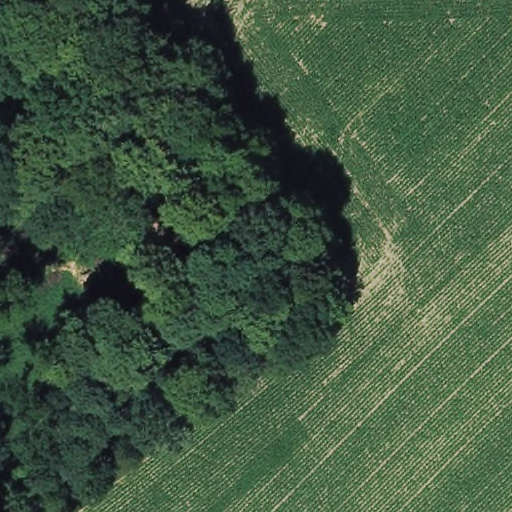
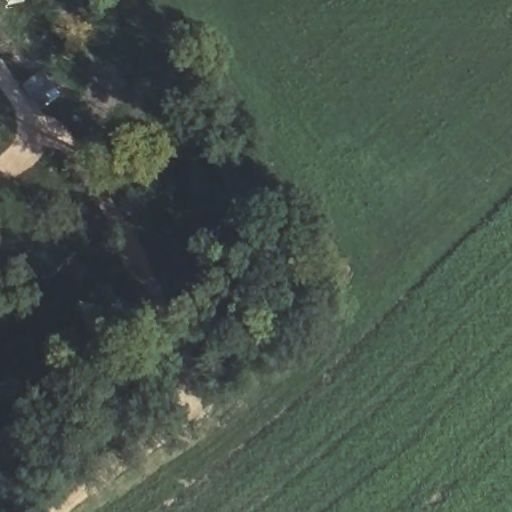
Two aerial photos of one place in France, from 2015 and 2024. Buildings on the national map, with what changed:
unchanged [(42,74),(60,98),(41,112),(23,88),(42,74)]

